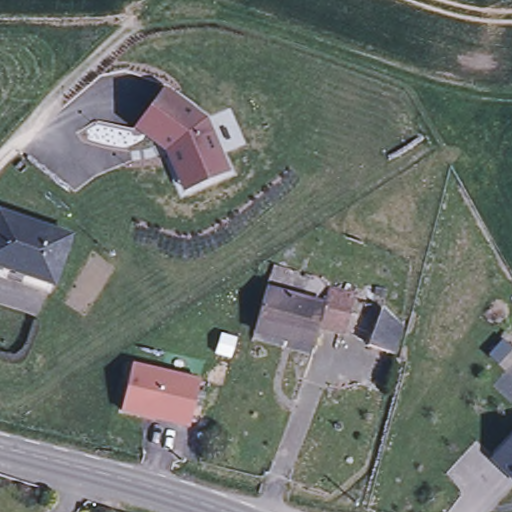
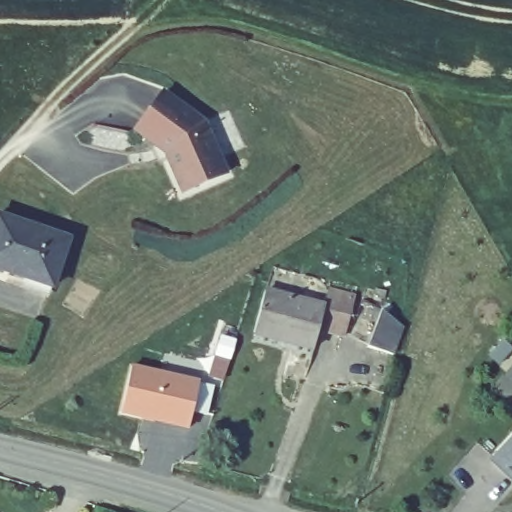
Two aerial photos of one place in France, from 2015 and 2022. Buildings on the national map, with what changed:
unchanged [(168,82),(208,112),(230,163),(188,182),(171,142),(140,119),(168,82)]
unchanged [(68,239),(52,286),(0,269),(0,216),(68,239)]
unchanged [(319,311),(260,296),(262,288),(268,271),(306,281),(314,284),(318,287),(323,295),(319,311)]
unchanged [(340,340),(314,333),(320,312),(319,311),(323,295),(350,301),(340,340)]
unchanged [(247,345),(249,337),(260,296),(319,311),(320,312),(314,333),(309,353),(307,361),(247,345)]
unchanged [(400,325),(401,326),(392,354),(368,346),(382,310),(400,325)]
unchanged [(133,365),(199,380),(187,429),(123,415),(133,365)]
unchanged [(512,440),(512,486),(489,464),(512,440)]

